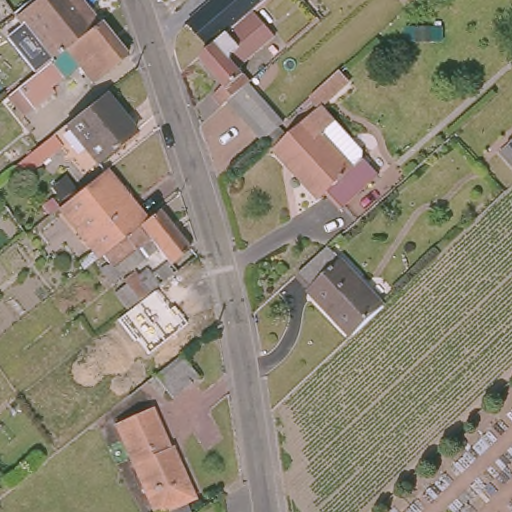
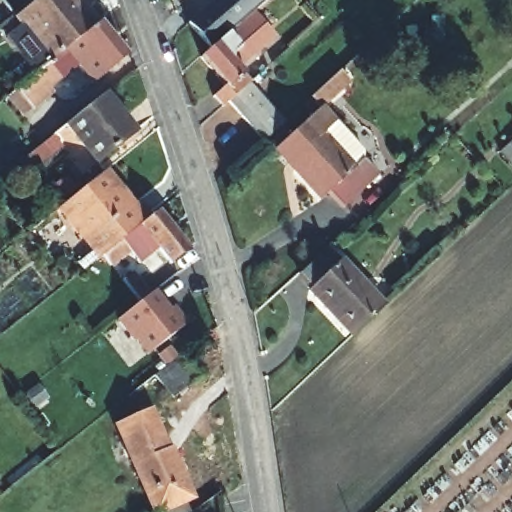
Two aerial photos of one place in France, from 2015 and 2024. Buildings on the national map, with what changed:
unchanged [(0,7),(0,6),(7,0),(10,4),(2,10),(0,7)]
unchanged [(14,7),(25,0),(79,0),(82,4),(87,1),(97,15),(50,55),(14,7)]
unchanged [(231,96),(227,100),(220,91),(232,80),(206,50),(195,39),(226,12),(236,24),(259,5),(280,28),(242,59),(256,75),(231,96)]
unchanged [(7,90),(17,81),(39,65),(50,55),(97,15),(98,14),(126,47),(91,77),(77,60),(63,70),(60,67),(49,77),(54,84),(33,100),(22,109),(7,90)]
unchanged [(325,104),(316,93),(342,69),(345,67),(354,77),(352,80),(325,104)]
unchanged [(253,122),(231,96),(256,75),(277,101),(287,114),(264,135),(253,122)]
unchanged [(136,130),(97,160),(66,122),(76,115),(105,91),(136,130)]
unchanged [(321,106),(334,121),(321,135),(350,169),(361,160),(375,175),(339,207),(326,192),(317,200),(274,150),(321,106)]
unchanged [(40,160),(32,150),(50,135),(53,132),(61,142),(40,160)]
unchanged [(107,254),(66,205),(75,197),(111,168),(152,218),(107,254)]
unchanged [(194,245),(174,260),(162,245),(142,260),(134,248),(116,262),(114,263),(107,254),(152,218),(165,207),(194,245)]
unchanged [(351,328),(331,305),(327,307),(306,282),(309,280),(297,266),(327,241),(381,303),(351,328)]
demolished [(148,296),(132,308),(119,291),(130,282),(127,278),(137,271),(141,275),(151,268),(163,284),(148,296)]
new [(138,302),(122,281),(132,272),(150,292),(155,288),(170,307),(175,304),(188,320),(145,356),(142,352),(133,360),(126,350),(135,342),(116,320),(138,302)]
unchanged [(172,395),(155,373),(181,353),(198,375),(172,395)]
unchanged [(162,449),(166,448),(177,475),(155,484),(150,471),(133,478),(111,425),(146,411),(162,449)]
unchanged [(133,478),(150,471),(155,484),(177,475),(188,500),(180,505),(184,512),(147,512),(133,478)]

